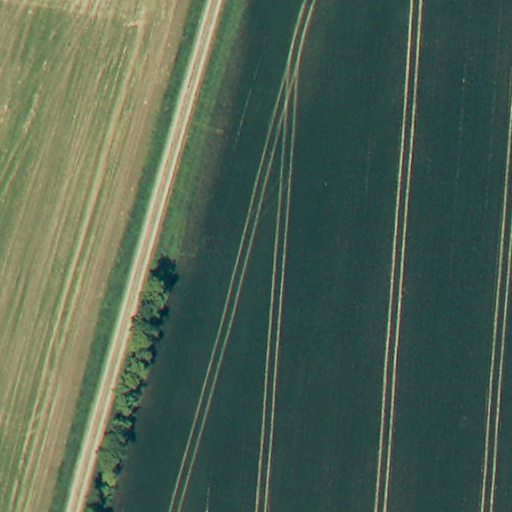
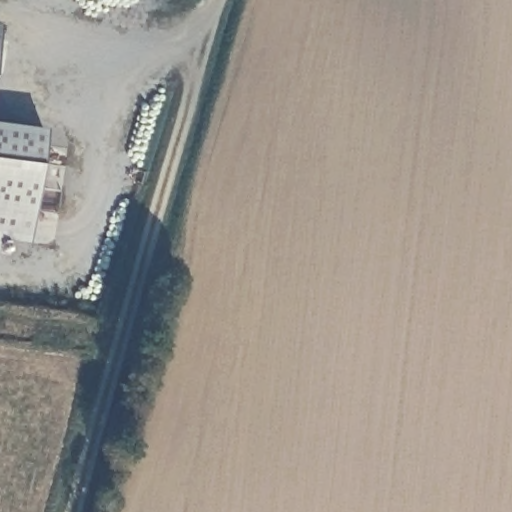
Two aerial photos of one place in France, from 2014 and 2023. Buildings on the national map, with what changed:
new [(47,131),(30,245),(2,241),(0,252),(0,125),(47,131)]

